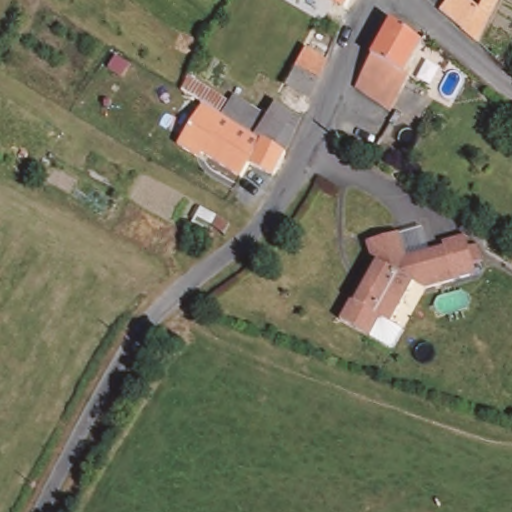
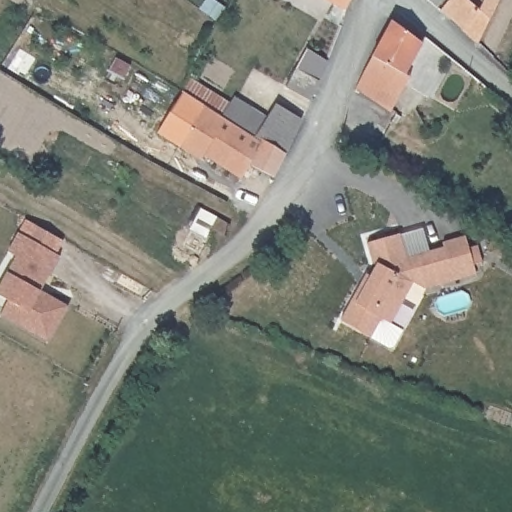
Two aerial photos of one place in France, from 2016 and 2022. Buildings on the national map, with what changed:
unchanged [(328,0),(351,0),(346,10),(328,0)]
unchanged [(499,0),(478,44),(440,11),(449,0),(469,0),(480,9),(484,0),(499,0)]
unchanged [(406,74),(410,77),(393,109),(356,89),(392,20),(422,43),(406,74)]
unchanged [(303,114),(278,100),(313,38),(332,49),(303,114)]
unchanged [(250,165),(178,149),(204,104),(182,90),(187,79),(230,105),(236,97),(267,118),(276,104),(301,119),(285,154),(275,177),(250,165)]
unchanged [(496,164),(504,150),(512,155),(512,173),(496,164)]
unchanged [(224,235),(212,230),(217,219),(230,225),(224,235)]
new [(19,233),(30,239),(37,225),(59,238),(51,251),(60,256),(49,275),(41,290),(67,306),(47,342),(1,315),(9,300),(0,296),(0,286),(17,257),(8,252),(19,233)]
unchanged [(340,321),(352,299),(356,302),(377,265),(372,263),(367,243),(399,234),(406,258),(445,247),(443,242),(466,235),(469,247),(478,244),(486,271),(477,274),(454,280),(425,289),(413,282),(392,320),(405,328),(393,347),(388,348),(370,338),(340,321)]

